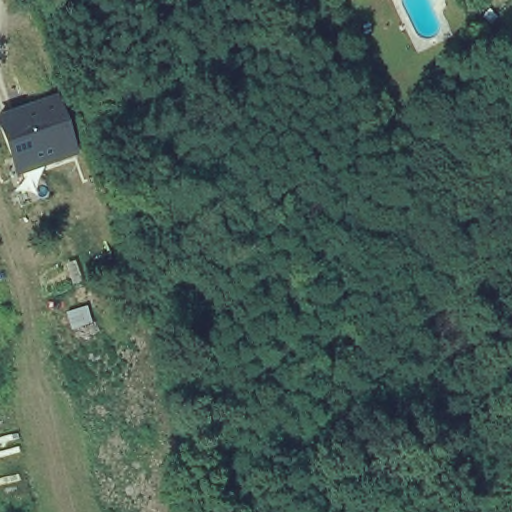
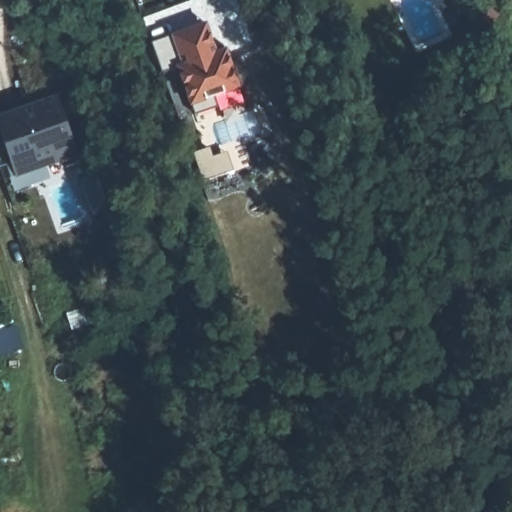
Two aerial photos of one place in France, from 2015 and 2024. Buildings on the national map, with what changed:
new [(207,21),(217,49),(227,46),(242,89),(215,96),(217,108),(195,115),(191,106),(190,107),(174,63),(180,61),(170,33),(207,21)]
unchanged [(17,173),(0,125),(0,118),(55,99),(74,153),(17,173)]
new [(210,146),(214,155),(228,151),(235,170),(203,180),(192,151),(210,146)]

